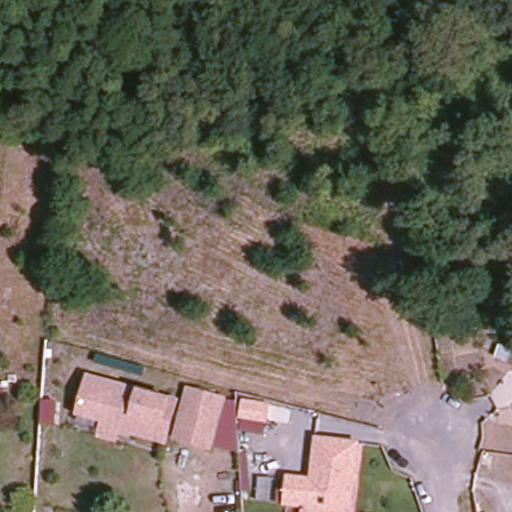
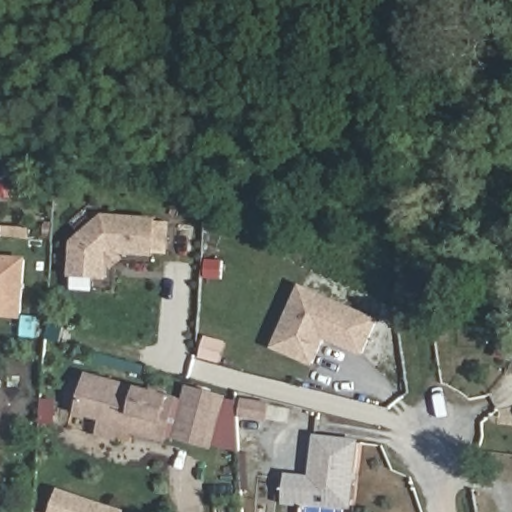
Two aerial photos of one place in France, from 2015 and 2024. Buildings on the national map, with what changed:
new [(120,255),(125,260),(113,271),(107,266),(107,280),(69,278),(69,243),(102,215),(156,219),(155,258),(120,255)]
new [(22,319),(0,318),(0,256),(27,258),(22,319)]
new [(325,340),(314,367),(273,349),(300,285),(378,320),(362,356),(325,340)]
unchanged [(121,430),(119,437),(100,432),(103,418),(81,412),(90,376),(178,399),(167,439),(134,431),(134,433),(121,430)]
unchanged [(191,387),(225,395),(213,444),(179,435),(191,387)]
unchanged [(243,396),(258,395),(258,420),(244,421),(243,396)]
unchanged [(295,502),(287,501),(290,477),(296,477),(312,479),(317,441),(357,446),(349,507),(344,506),(343,512),(302,512),(304,503),(295,502)]
new [(51,512),(59,489),(127,511),(126,512),(51,512)]
new [(42,512),(38,512),(39,511),(42,512)]

